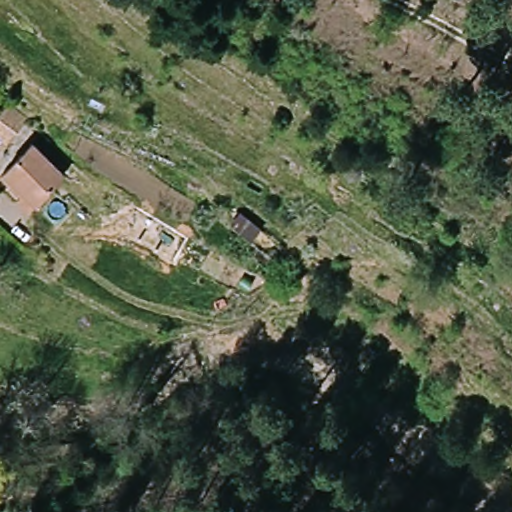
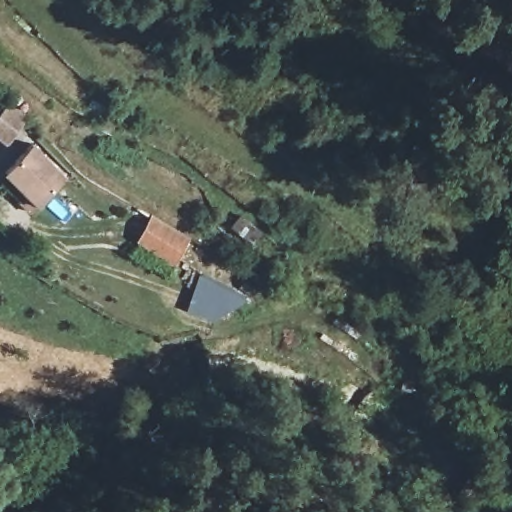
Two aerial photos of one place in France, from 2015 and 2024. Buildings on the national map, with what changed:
unchanged [(35,142),(67,175),(40,205),(4,172),(35,142)]
new [(136,241),(153,213),(191,238),(174,265),(136,241)]
new [(187,310),(201,274),(249,299),(223,324),(187,310)]

